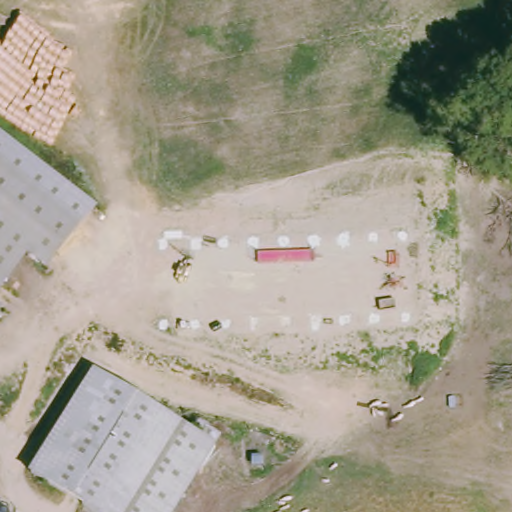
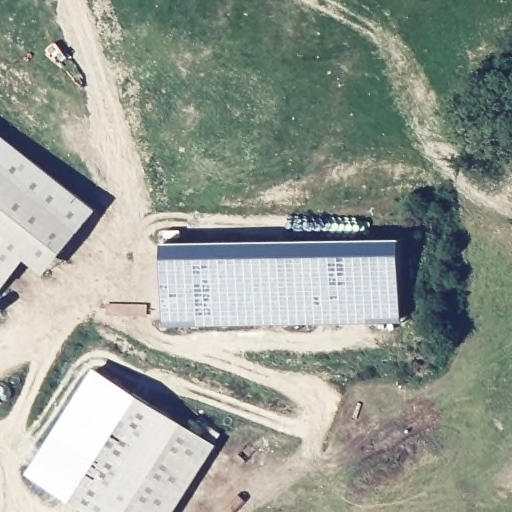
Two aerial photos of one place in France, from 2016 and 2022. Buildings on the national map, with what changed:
unchanged [(96,201),(49,264),(29,249),(5,281),(0,276),(0,128),(96,201)]
new [(166,326),(163,241),(404,237),(405,320),(166,326)]
unchanged [(5,281),(0,288),(0,276),(5,281)]
unchanged [(215,450),(169,512),(95,512),(29,463),(102,366),(215,450)]

